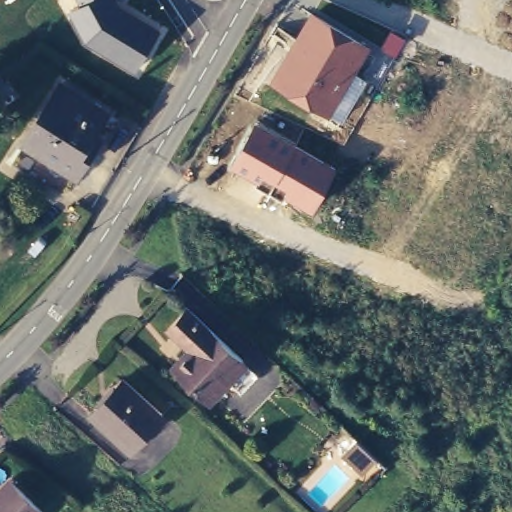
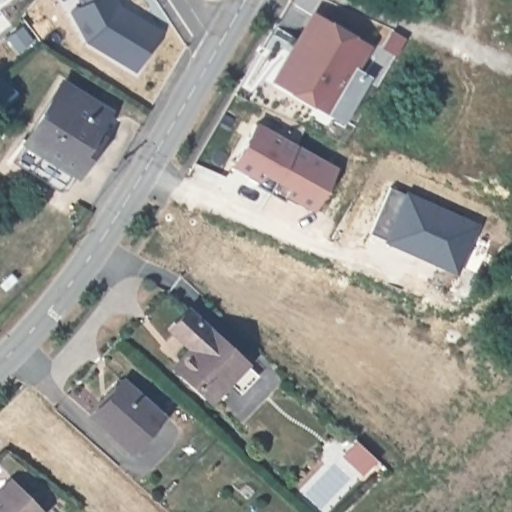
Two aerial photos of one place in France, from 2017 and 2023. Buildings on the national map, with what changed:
unchanged [(85,41),(69,10),(80,5),(78,0),(119,0),(122,5),(162,26),(137,72),(85,41)]
unchanged [(311,10),(371,44),(356,70),(368,77),(342,118),(331,111),(328,116),(269,80),(311,10)]
unchanged [(92,147),(80,168),(29,136),(65,79),(108,105),(94,127),(102,133),(92,147)]
unchanged [(9,96),(0,102),(0,85),(9,96)]
unchanged [(337,164),(314,210),(285,193),(282,198),(255,184),(257,180),(231,168),(255,120),(337,164)]
new [(370,230),(391,186),(475,223),(455,269),(370,230)]
unchanged [(195,313),(249,366),(215,400),(180,368),(197,351),(177,330),(195,313)]
unchanged [(125,385),(162,420),(128,454),(91,418),(125,385)]
unchanged [(2,474),(7,479),(40,510),(38,512),(0,512),(0,476),(2,474)]

